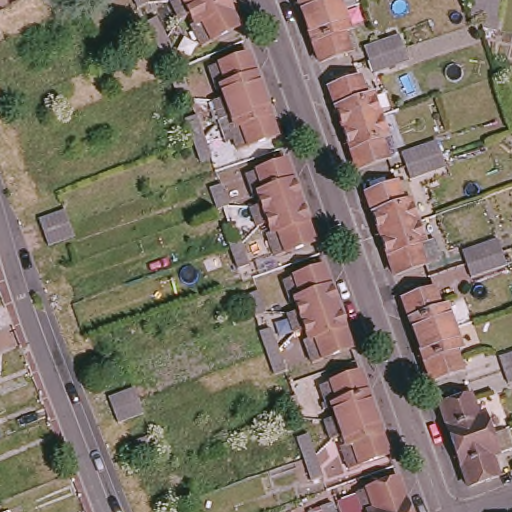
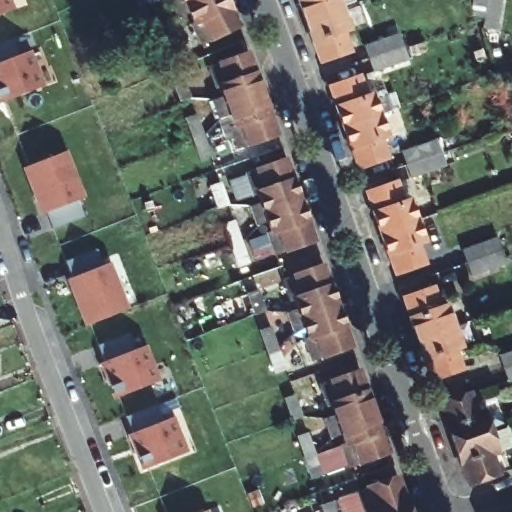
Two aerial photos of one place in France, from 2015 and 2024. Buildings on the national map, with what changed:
new [(11,0),(14,9),(6,12),(0,14),(0,0),(11,0)]
unchanged [(131,0),(145,0),(147,4),(135,9),(131,0)]
unchanged [(179,11),(174,0),(223,0),(196,14),(193,9),(191,5),(183,8),(179,11)]
unchanged [(212,31),(213,33),(201,39),(190,17),(196,14),(223,0),(232,0),(240,16),(212,31)]
unchanged [(308,13),(303,0),(345,0),(352,19),(346,21),(353,41),(321,52),(314,31),(308,13)]
unchanged [(486,18),(472,15),(474,0),(502,0),(498,20),(496,30),(485,28),(486,19),(486,18)]
unchanged [(176,60),(165,66),(154,45),(153,44),(144,25),(155,20),(163,34),(165,40),(176,60)]
unchanged [(411,60),(374,71),(370,60),(366,48),(403,36),(408,50),(411,60)]
new [(1,102),(0,101),(0,43),(14,38),(21,55),(30,51),(38,70),(44,86),(36,89),(1,102)]
unchanged [(254,141),(254,143),(243,146),(243,145),(235,124),(241,121),(239,115),(238,114),(233,115),(226,118),(219,95),(220,95),(230,91),(227,83),(221,85),(214,65),(213,63),(227,58),(227,60),(255,51),(262,71),(276,110),(283,131),(254,141)]
unchanged [(347,139),(340,119),(333,99),(326,79),(358,69),(364,89),(371,86),(378,106),(385,126),(378,128),(385,148),(354,159),(347,139)]
unchanged [(180,102),(173,82),(184,79),(191,99),(180,102)]
unchanged [(203,133),(204,138),(212,159),(201,163),(193,141),(186,120),(197,116),(203,133)]
unchanged [(404,154),(439,141),(444,153),(444,156),(448,166),(412,178),(408,166),(404,154)]
new [(75,181),(78,180),(84,197),(77,200),(84,216),(53,228),(41,198),(38,199),(26,166),(63,152),(75,181)]
unchanged [(258,219),(251,199),(251,198),(263,195),(263,193),(260,185),(253,187),(247,166),(246,164),(258,160),(259,162),(288,152),(295,172),(308,211),(273,223),(270,214),(264,215),(258,219)]
unchanged [(389,250),(382,230),(375,210),(368,189),(400,179),(406,199),(412,197),(420,218),(426,237),(420,239),(427,259),(396,269),(389,250)]
unchanged [(221,209),(217,210),(211,190),(222,186),(228,206),(221,209)]
demolished [(49,241),(46,233),(45,230),(39,216),(65,206),(70,220),(71,224),(74,232),(49,241)]
unchanged [(287,242),(287,245),(276,248),(275,247),(267,225),(273,223),(308,211),(316,232),(287,242)]
unchanged [(241,242),(249,266),(238,269),(229,246),(222,225),(234,221),(240,239),(241,242)]
unchanged [(508,264),(473,277),(468,265),(464,252),(500,240),(504,251),(505,254),(508,264)]
new [(103,265),(110,263),(116,279),(114,280),(125,310),(87,325),(75,293),(78,292),(66,261),(97,249),(103,265)]
unchanged [(288,303),(300,299),(297,290),(291,292),(284,274),(283,270),(295,266),(296,269),(325,259),(331,278),(345,317),(310,328),(308,323),(307,320),(298,323),(295,324),(288,303)]
unchanged [(421,356),(414,336),(407,316),(400,296),(431,286),(438,306),(444,304),(451,323),(458,344),(452,346),(459,366),(428,376),(421,356)]
unchanged [(254,315),(248,295),(260,291),(266,311),(254,315)]
unchanged [(353,338),(324,348),(325,350),(313,354),(305,330),(310,328),(345,317),(353,338)]
unchanged [(261,332),(273,328),(278,344),(280,350),(287,371),(275,375),(268,354),(261,332)]
new [(151,384),(116,397),(109,380),(112,379),(99,344),(129,332),(136,349),(146,345),(153,365),(159,380),(151,384)]
unchanged [(512,354),(512,381),(510,382),(506,370),(501,358),(512,354)]
unchanged [(344,426),(334,430),(331,431),(325,409),(329,409),(337,406),(336,404),(334,397),(329,399),(321,376),(332,372),(333,373),(361,363),(369,384),(382,423),(347,435),(345,431),(344,426)]
demolished [(121,422),(116,410),(110,397),(135,387),(141,401),(144,412),(121,422)]
unchanged [(444,421),(437,401),(468,391),(475,411),(481,409),(488,428),(495,449),(489,451),(496,470),(466,481),(459,461),(451,441),(444,421)]
unchanged [(304,419),(292,423),(285,401),(296,397),(304,419)]
new [(144,469),(137,452),(140,451),(127,416),(157,404),(164,420),(174,417),(181,436),(187,452),(179,454),(144,469)]
unchanged [(390,444),(362,454),(362,456),(350,460),(342,436),(347,435),(382,423),(390,444)]
demolished [(128,444),(155,435),(159,448),(133,458),(128,444)]
unchanged [(312,481),(305,460),(303,455),(298,439),(310,435),(315,451),(324,478),(312,481)]
unchanged [(373,510),(370,502),(365,504),(359,484),(358,482),(368,478),(369,481),(399,470),(406,490),(413,512),(367,512),(373,510)]
unchanged [(322,507),(333,503),(336,512),(323,512),(322,507)]
new [(205,512),(200,512),(204,511),(205,512)]

